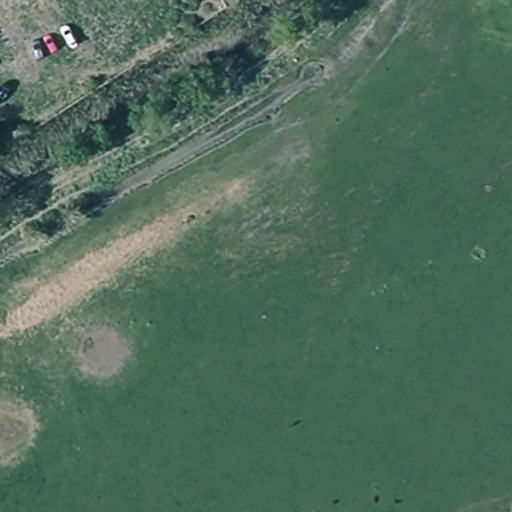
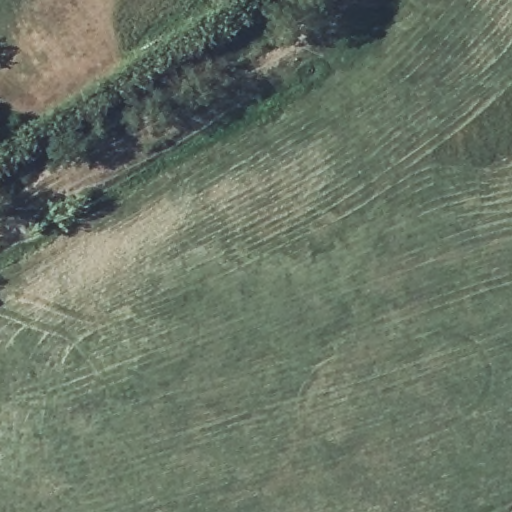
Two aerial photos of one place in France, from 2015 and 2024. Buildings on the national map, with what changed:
unchanged [(8,136),(4,139),(0,141),(0,126),(1,125),(8,136)]

